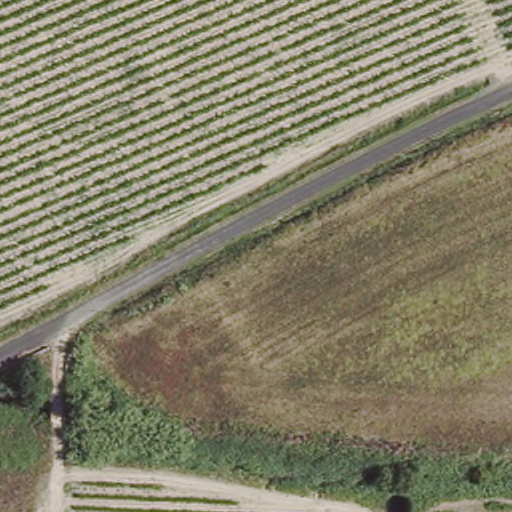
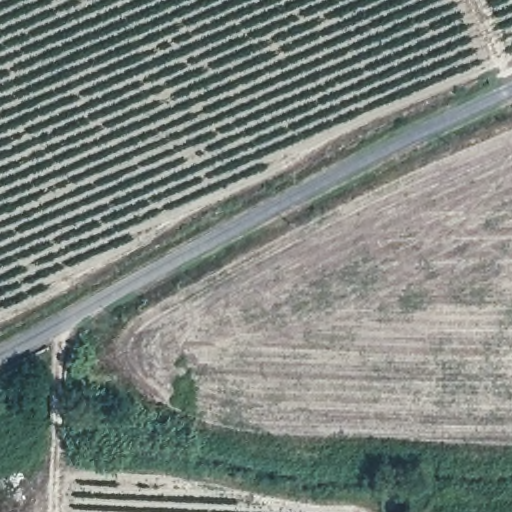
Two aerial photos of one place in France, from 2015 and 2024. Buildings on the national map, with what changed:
[]

